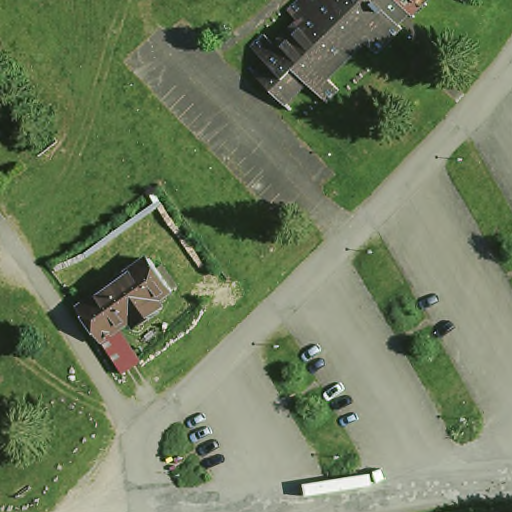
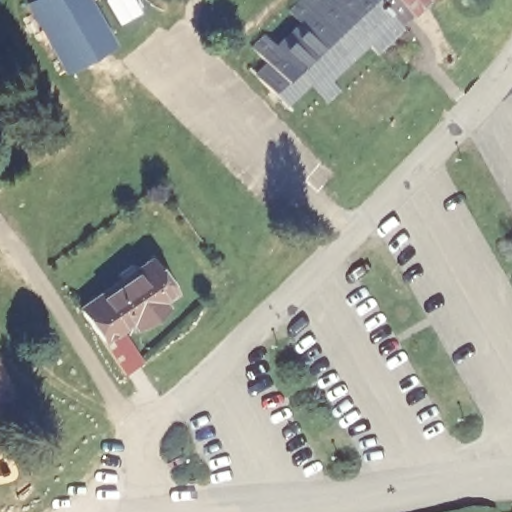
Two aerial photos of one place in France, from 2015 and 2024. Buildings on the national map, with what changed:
new [(115,45),(65,74),(22,2),(26,0),(89,0),(115,45)]
unchanged [(400,35),(374,65),(360,56),(329,88),(335,96),(319,107),(302,92),(282,110),(256,87),(266,78),(249,61),(264,48),(275,58),(298,36),(287,25),(315,0),(325,10),(337,0),(416,0),(389,27),(400,35)]
unchanged [(144,319),(130,326),(125,318),(118,322),(114,315),(101,323),(82,299),(99,289),(127,272),(124,267),(134,261),(137,267),(145,262),(150,273),(157,268),(171,290),(164,295),(147,305),(152,313),(144,319)]

